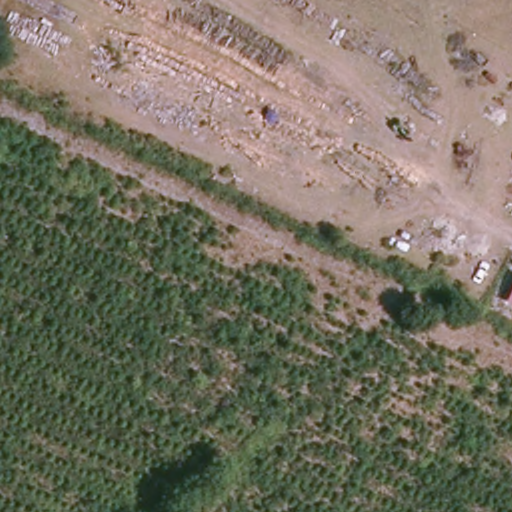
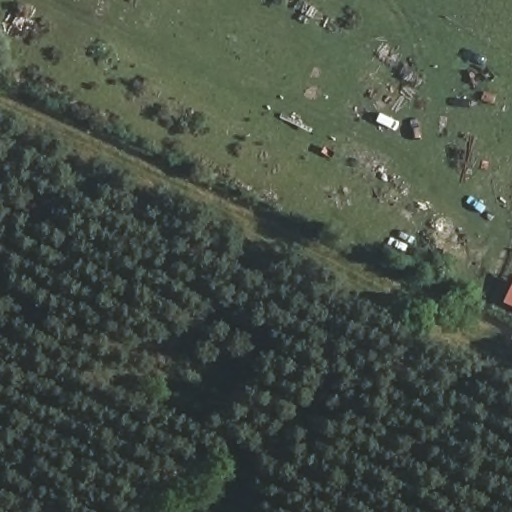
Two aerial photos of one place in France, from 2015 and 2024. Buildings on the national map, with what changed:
unchanged [(512,283),(512,304),(504,300),(512,283)]

